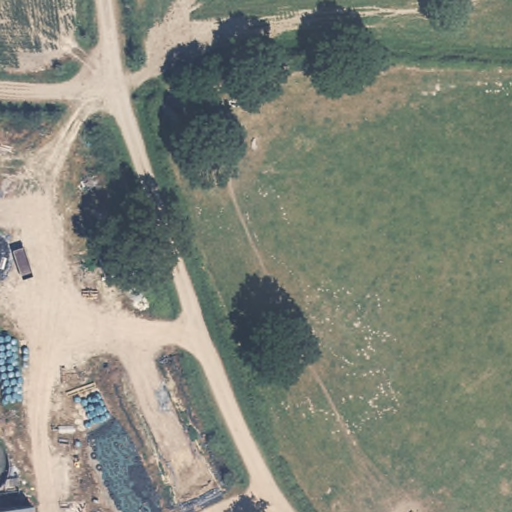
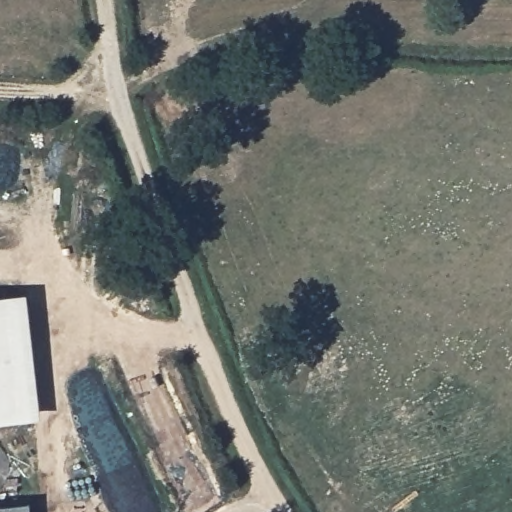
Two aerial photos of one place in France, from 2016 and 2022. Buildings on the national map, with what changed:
new [(0,299),(28,296),(43,422),(0,426),(0,299)]
unchanged [(0,511),(30,508),(30,512),(0,512),(0,511)]

